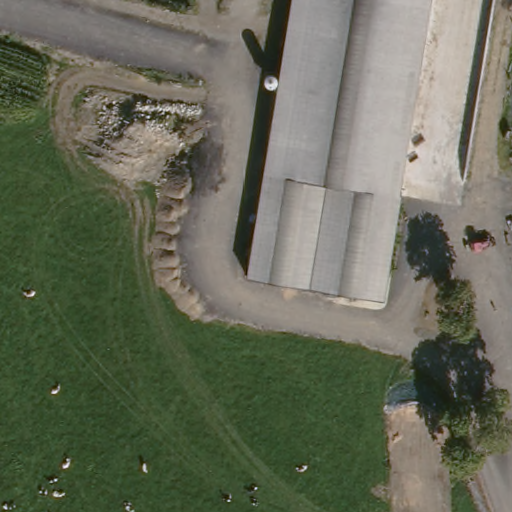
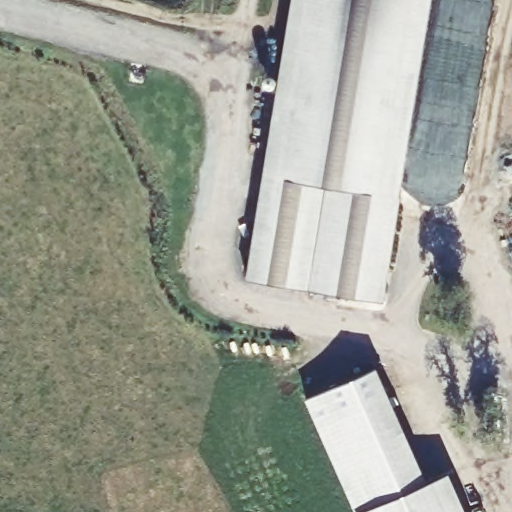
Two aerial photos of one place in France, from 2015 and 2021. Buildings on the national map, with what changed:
unchanged [(290,0),(430,0),(398,194),(260,172),(290,0)]
unchanged [(398,194),(382,297),(245,277),(260,172),(398,194)]
new [(374,365),(427,481),(448,472),(466,512),(355,512),(304,396),(374,365)]

